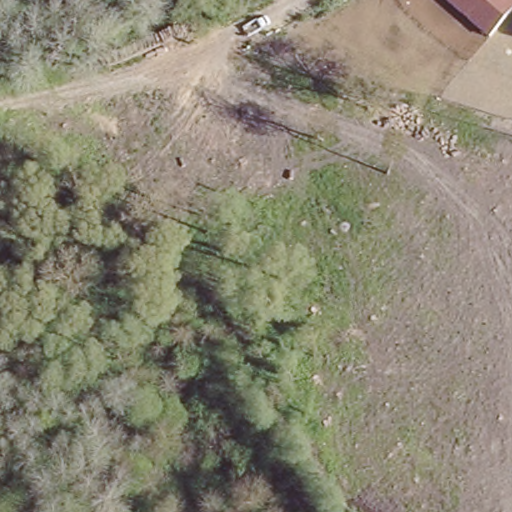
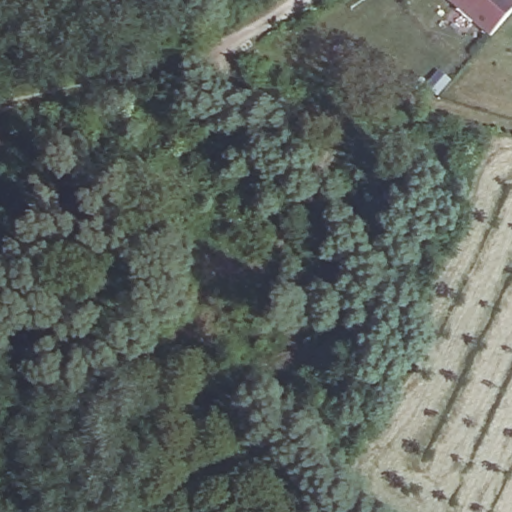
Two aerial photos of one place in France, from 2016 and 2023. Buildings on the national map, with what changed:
unchanged [(488,38),(444,0),(512,0),(512,11),(488,38)]

